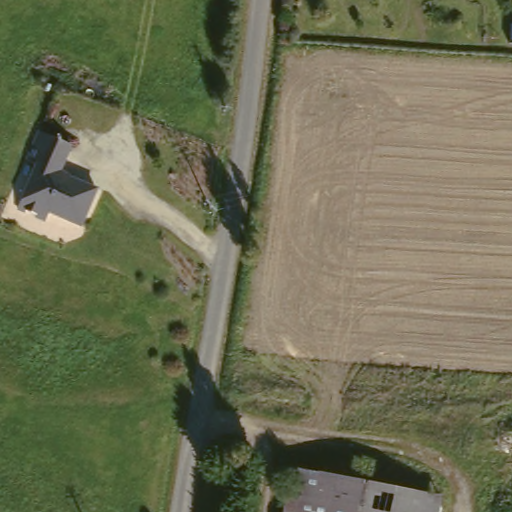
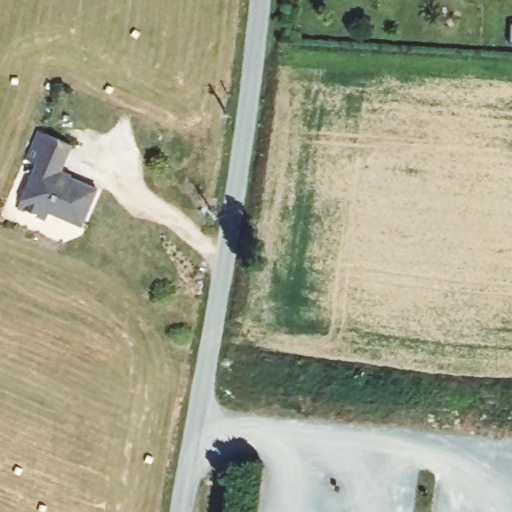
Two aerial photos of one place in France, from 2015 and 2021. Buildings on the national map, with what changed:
unchanged [(76,225),(46,213),(42,218),(13,207),(30,164),(21,161),(34,131),(66,142),(55,171),(93,186),(76,225)]
demolished [(281,512),(289,469),(437,495),(434,512),(281,512)]

